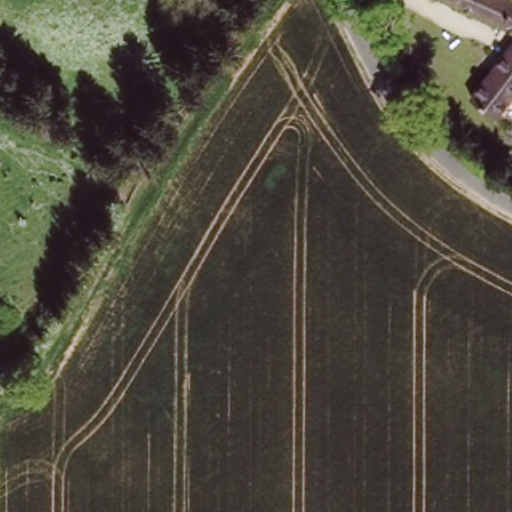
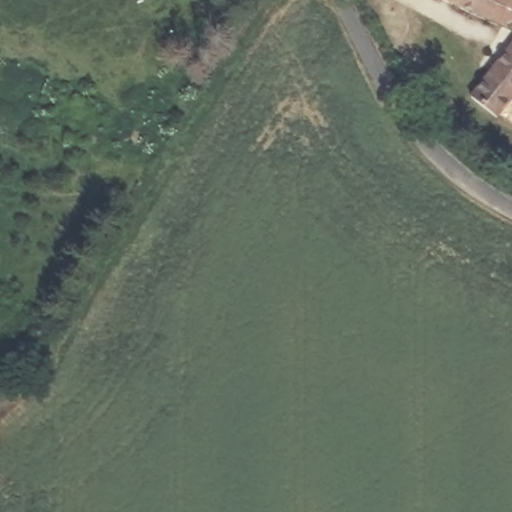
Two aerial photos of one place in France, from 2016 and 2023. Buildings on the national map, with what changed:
unchanged [(512,0),(512,31),(446,0),(512,0)]
unchanged [(492,81),(512,54),(512,108),(502,121),(477,101),(492,81)]

